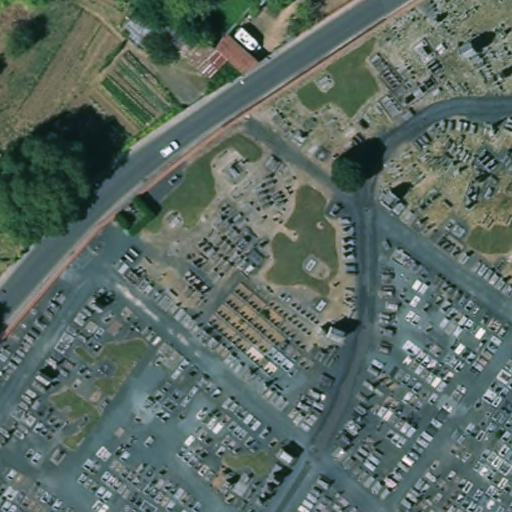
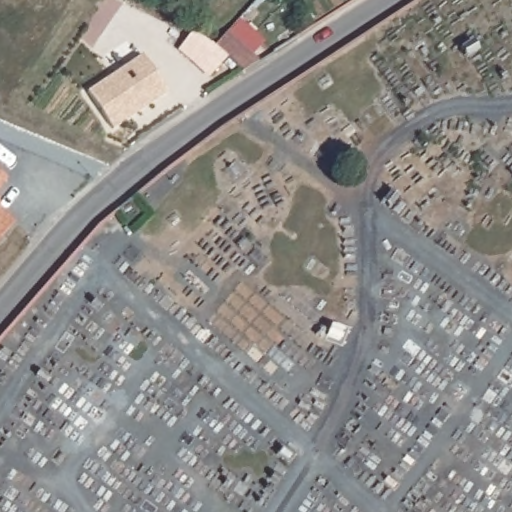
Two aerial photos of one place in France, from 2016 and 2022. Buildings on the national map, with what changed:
unchanged [(261,56),(249,69),(246,66),(230,51),(213,69),(183,42),(196,26),(218,39),(230,26),(261,56)]
new [(87,91),(142,55),(169,92),(112,130),(87,91)]
new [(5,180),(0,186),(0,176),(5,180)]
new [(14,222),(0,238),(0,210),(14,222)]

